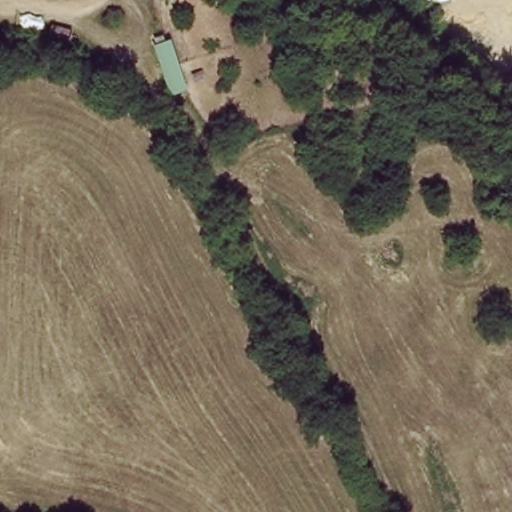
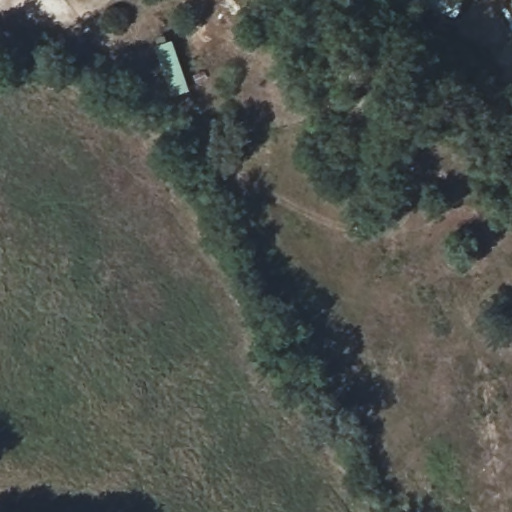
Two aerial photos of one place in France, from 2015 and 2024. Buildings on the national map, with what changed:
unchanged [(174,37),(188,91),(173,95),(166,85),(156,46),(174,37)]

